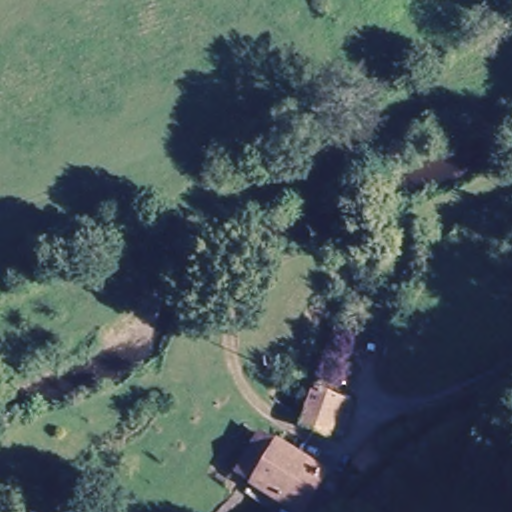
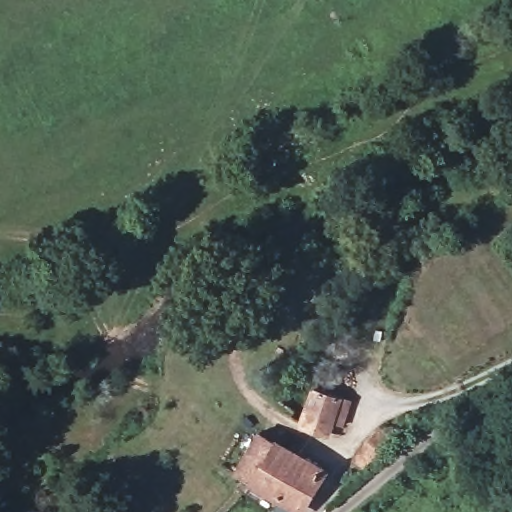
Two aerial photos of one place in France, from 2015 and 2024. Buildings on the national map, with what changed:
unchanged [(302,411),(311,390),(341,400),(327,437),(287,423),(292,408),(302,411)]
unchanged [(344,478),(380,432),(395,446),(352,484),(344,478)]
unchanged [(219,468),(232,435),(255,445),(260,436),(325,476),(301,512),(294,512),(232,477),(233,476),(219,468)]

